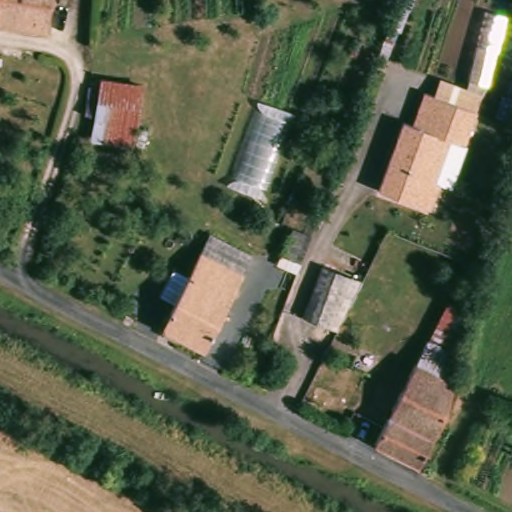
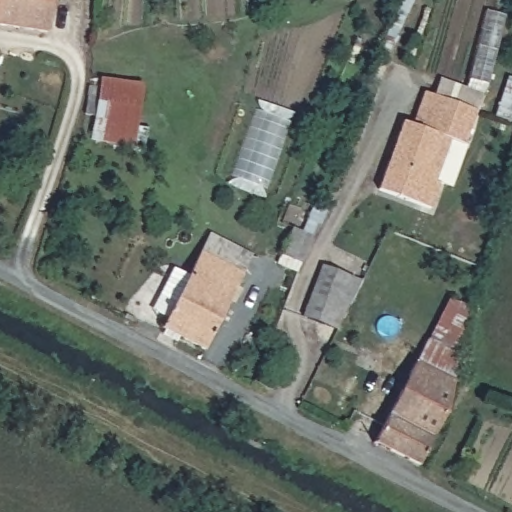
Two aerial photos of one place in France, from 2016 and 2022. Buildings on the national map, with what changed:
unchanged [(0,0),(2,0),(0,8),(0,0)]
unchanged [(0,23),(0,8),(2,0),(50,0),(42,35),(0,23)]
unchanged [(148,81),(135,146),(90,138),(104,76),(148,81)]
unchanged [(411,127),(423,94),(476,113),(464,146),(450,141),(433,183),(440,186),(429,210),(375,192),(400,121),(411,127)]
unchanged [(209,348),(165,325),(203,252),(211,235),(255,258),(247,274),(244,280),(209,348)]
unchanged [(353,276),(333,331),(300,318),(322,263),(353,276)]
unchanged [(462,344),(452,336),(460,319),(472,326),(462,344)]
unchanged [(447,410),(404,387),(430,337),(464,354),(461,362),(447,410)]
unchanged [(447,410),(420,462),(376,438),(404,387),(447,410)]

